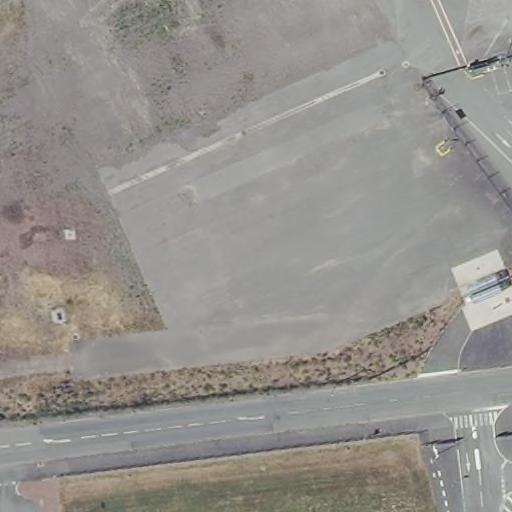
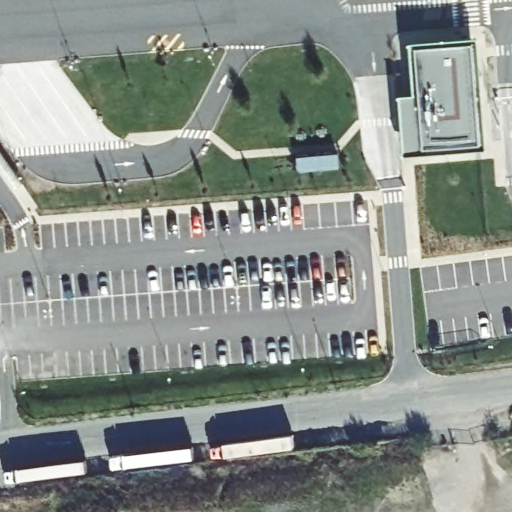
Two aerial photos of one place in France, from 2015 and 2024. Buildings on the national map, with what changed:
new [(482,151),(399,161),(393,101),(410,101),(403,44),(468,40),(482,151)]

